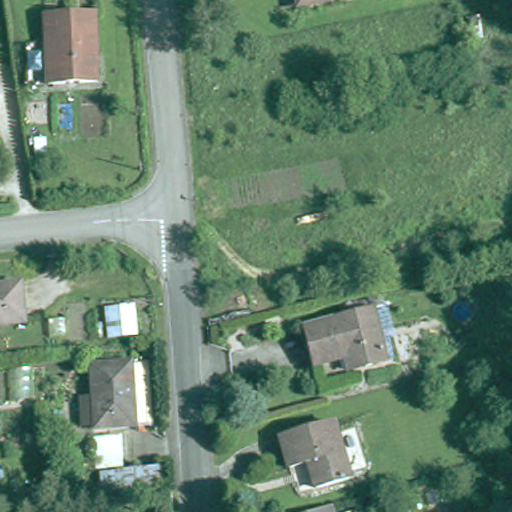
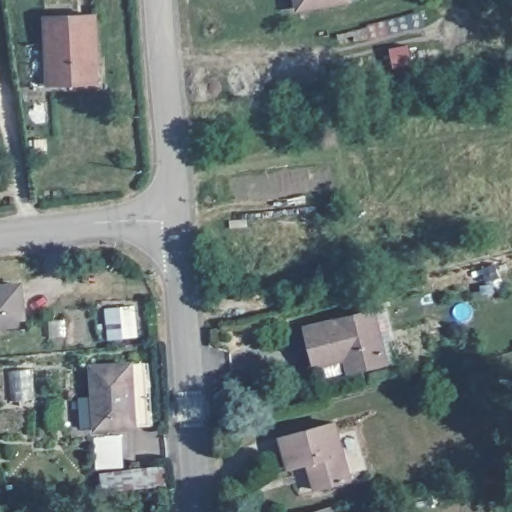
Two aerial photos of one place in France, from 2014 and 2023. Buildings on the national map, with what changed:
unchanged [(298,0),(343,0),(313,5),(300,8),(298,0)]
unchanged [(51,85),(45,15),(94,11),(100,81),(51,85)]
unchanged [(0,287),(21,285),(25,323),(0,326),(0,287)]
unchanged [(350,371),(347,358),(316,366),(306,328),(368,312),(375,311),(384,348),(387,361),(350,371)]
unchanged [(94,397),(92,367),(149,363),(153,425),(97,429),(97,427),(82,428),(80,398),(94,397)]
unchanged [(290,469),(281,437),(334,422),(350,480),(317,490),(309,464),(290,469)]
unchanged [(105,492),(103,474),(164,468),(165,486),(105,492)]
unchanged [(333,512),(314,512),(331,506),(333,512)]

